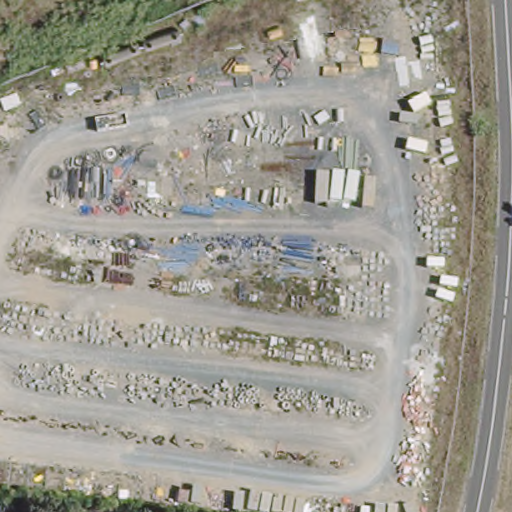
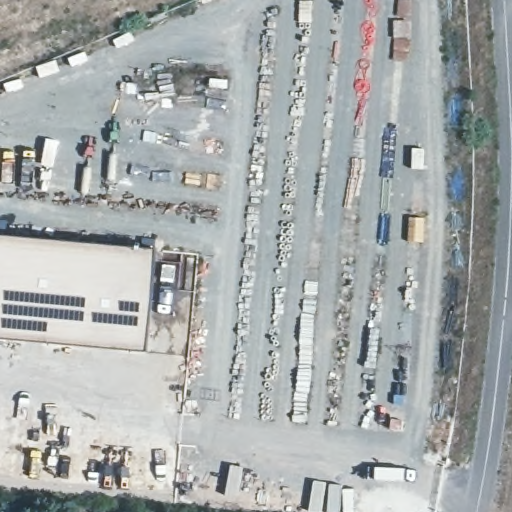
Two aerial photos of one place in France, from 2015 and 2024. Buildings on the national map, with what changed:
new [(6,221),(4,235),(155,249),(145,351),(0,337),(0,220),(6,221)]

